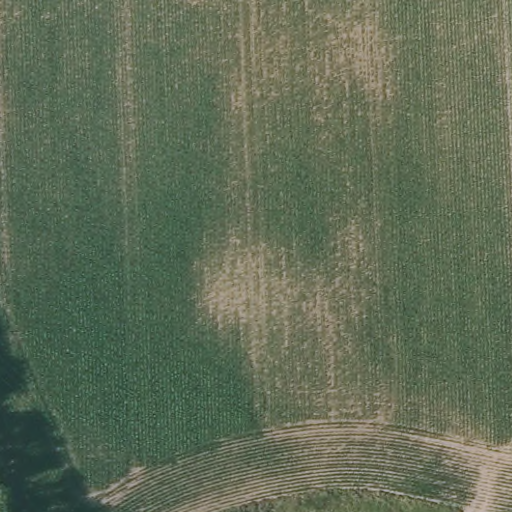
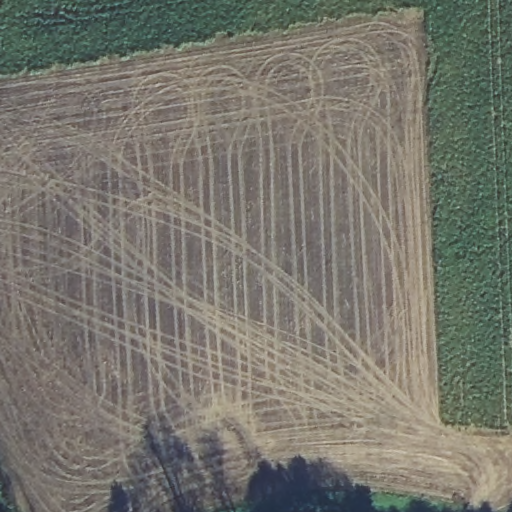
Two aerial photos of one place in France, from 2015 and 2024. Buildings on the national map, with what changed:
[]

